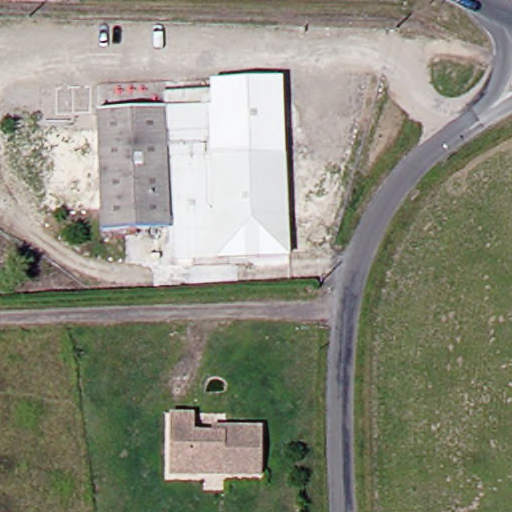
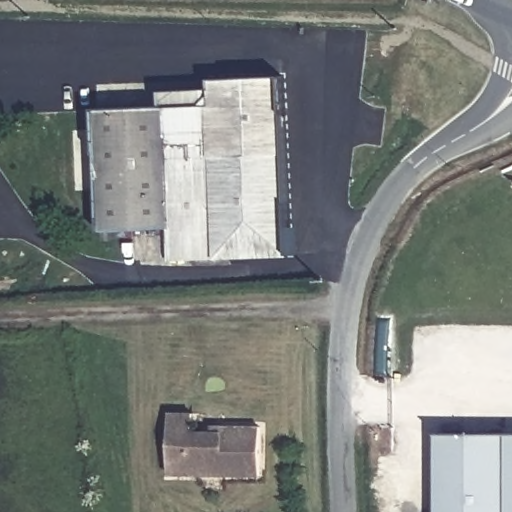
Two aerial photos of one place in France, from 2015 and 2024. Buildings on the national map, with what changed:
unchanged [(97,110),(214,106),(212,81),(281,78),(287,256),(169,260),(167,229),(101,232),(97,110)]
unchanged [(171,409),(194,409),(194,428),(223,428),(223,422),(262,423),(261,472),(170,471),(171,409)]
new [(512,433),(512,512),(437,512),(437,433),(512,433)]

